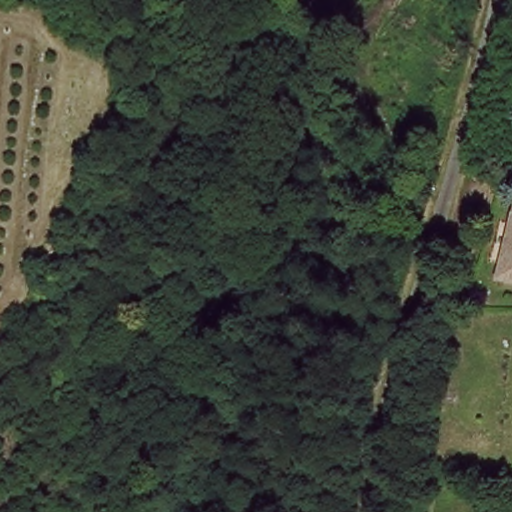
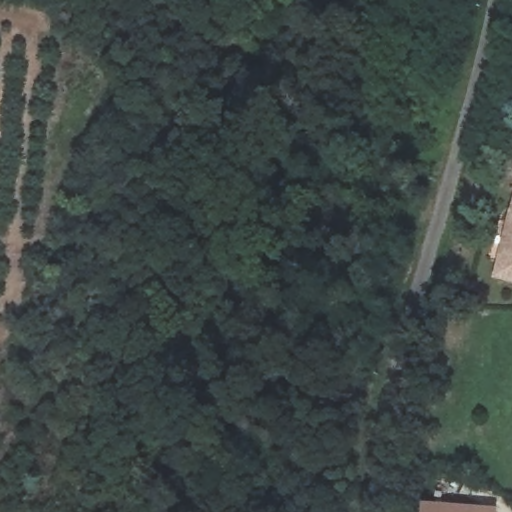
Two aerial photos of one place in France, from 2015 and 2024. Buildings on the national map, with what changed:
unchanged [(512,209),(512,268),(497,264),(512,209)]
new [(494,506),(494,512),(421,512),(422,504),(494,506)]

